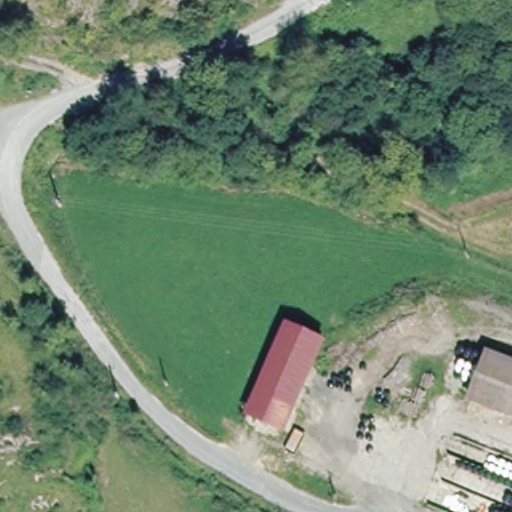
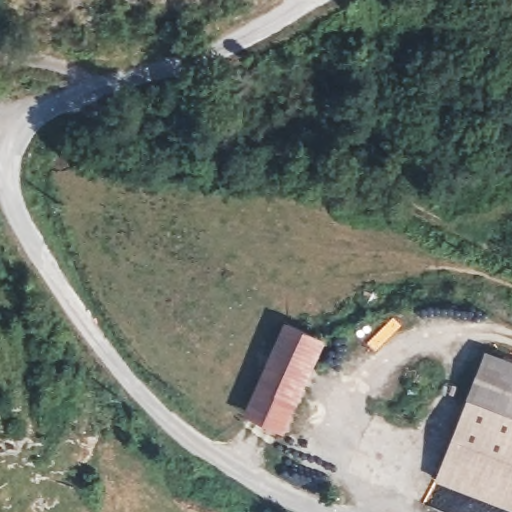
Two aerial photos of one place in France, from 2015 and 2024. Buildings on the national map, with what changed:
unchanged [(275,435),(240,418),(287,327),(324,342),(275,435)]
new [(512,510),(435,480),(486,348),(512,359),(512,510)]

